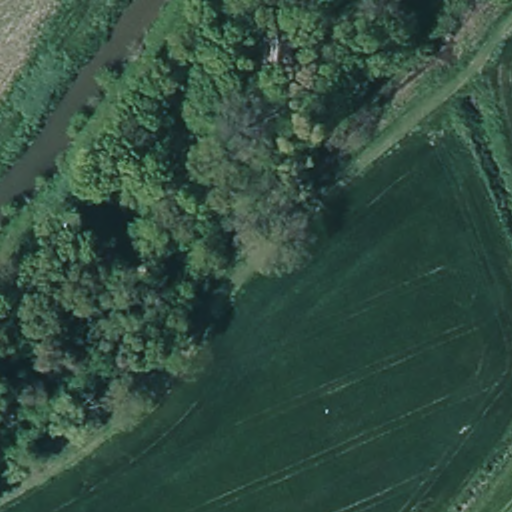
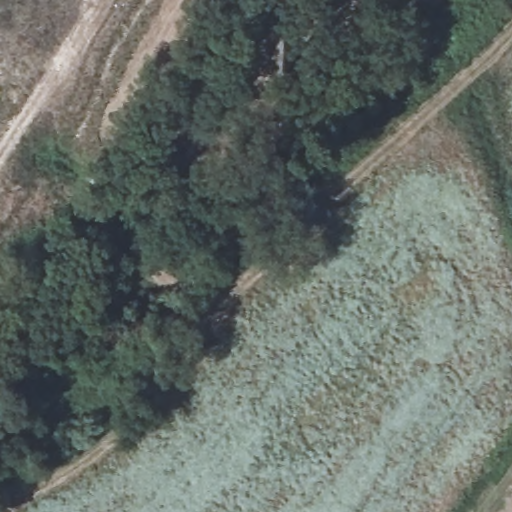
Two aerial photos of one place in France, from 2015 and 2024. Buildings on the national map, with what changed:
unchanged [(262,69),(262,36),(269,30),(279,29),(287,35),(287,69),(262,69)]

